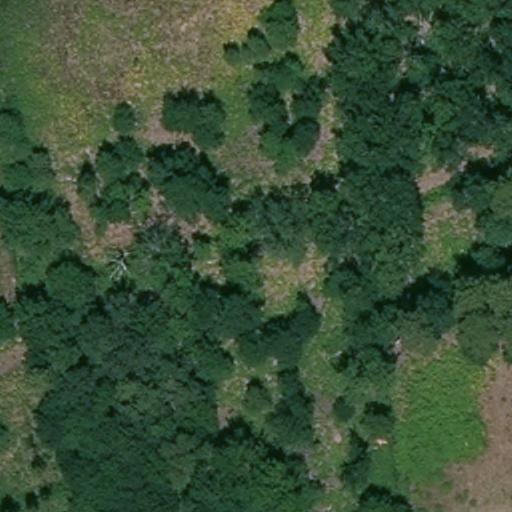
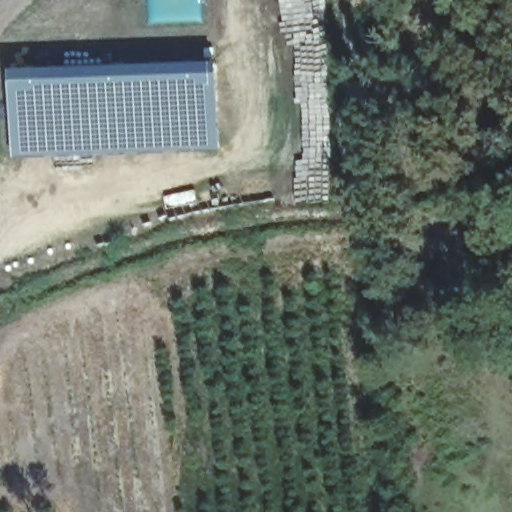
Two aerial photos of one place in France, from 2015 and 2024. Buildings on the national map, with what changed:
new [(10,70),(215,64),(219,150),(14,157),(10,70)]

